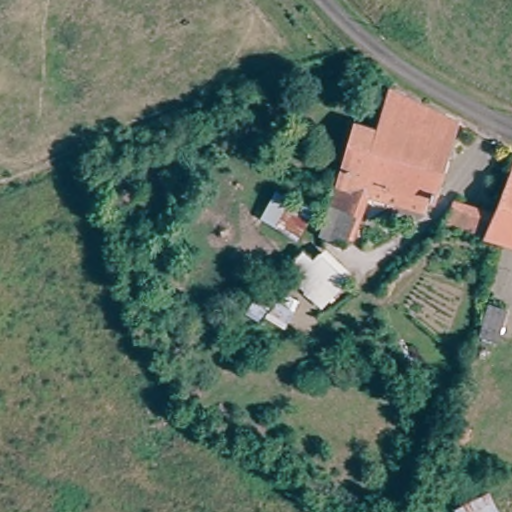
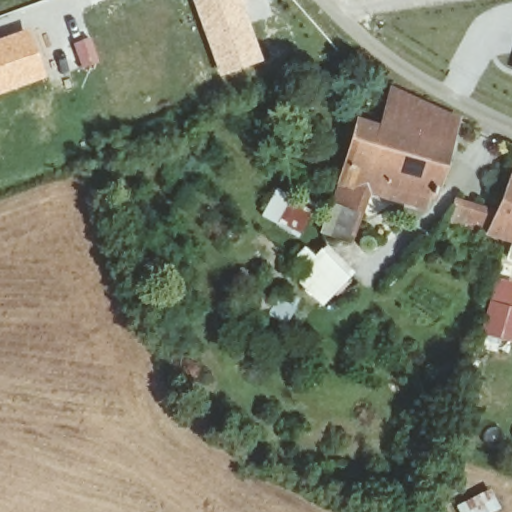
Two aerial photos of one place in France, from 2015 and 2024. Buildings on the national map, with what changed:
new [(219,77),(192,0),(242,0),(263,61),(219,77)]
new [(46,78),(0,94),(0,38),(27,28),(46,78)]
new [(91,38),(99,63),(82,69),(73,44),(91,38)]
unchanged [(364,189),(348,237),(347,241),(324,233),(334,206),(364,116),(379,121),(391,86),(408,96),(458,121),(431,199),(428,197),(424,209),(364,189)]
unchanged [(510,186),(512,180),(512,186),(510,186)]
unchanged [(299,228),(265,212),(275,189),(310,205),(299,228)]
unchanged [(460,199),(504,213),(512,189),(512,240),(511,240),(512,236),(497,232),(453,219),(460,199)]
unchanged [(316,265),(326,258),(345,282),(325,298),(299,266),(310,257),(316,265)]
unchanged [(493,312),(510,318),(500,344),(485,336),(493,312)]

